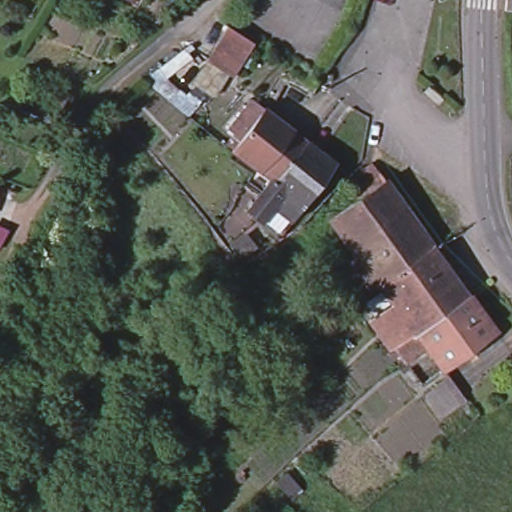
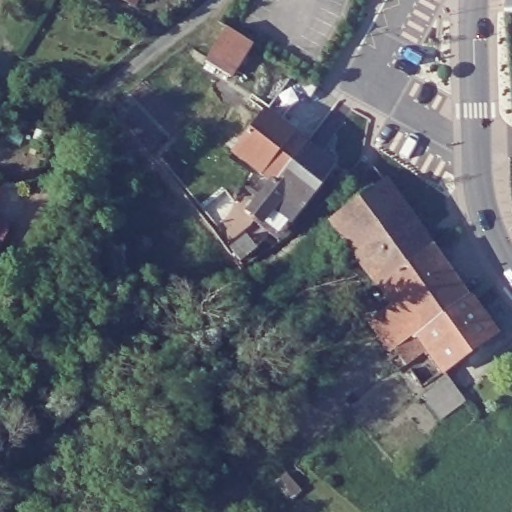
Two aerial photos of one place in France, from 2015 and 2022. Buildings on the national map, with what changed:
unchanged [(506,0),(512,0),(512,7),(506,7),(506,0)]
unchanged [(225,30),(250,45),(230,79),(205,63),(225,30)]
unchanged [(266,190),(250,179),(257,169),(260,165),(237,147),(269,106),(298,129),(311,139),(324,149),(341,161),(309,204),(298,219),(288,210),(277,225),(253,205),(264,192),(266,190)]
unchanged [(378,288),(377,286),(361,265),(351,250),(330,220),(358,201),(347,189),(352,182),(372,166),(384,182),(405,211),(433,250),(378,288)]
unchanged [(364,315),(381,301),(387,308),(391,305),(378,288),(433,250),(457,283),(468,297),(415,335),(414,336),(413,335),(391,351),(380,337),(369,321),(364,315)]
unchanged [(468,297),(479,312),(427,351),(415,335),(468,297)]
unchanged [(479,312),(495,335),(443,373),(427,351),(479,312)]
unchanged [(420,395),(448,375),(467,399),(436,418),(420,395)]

